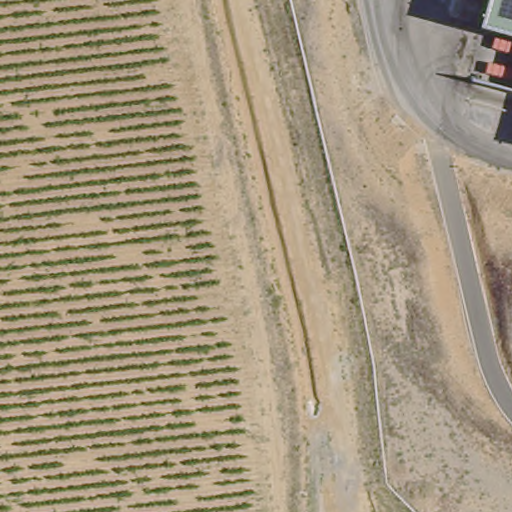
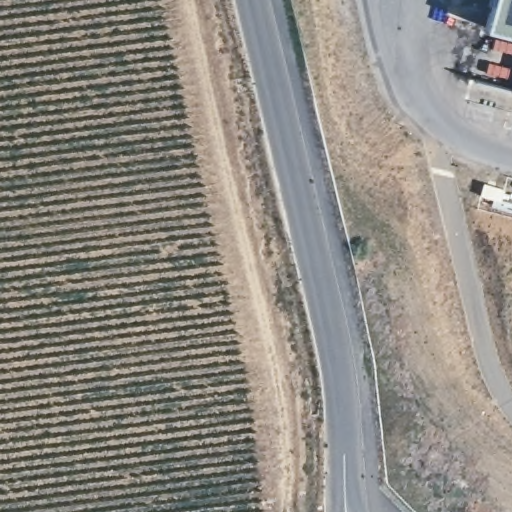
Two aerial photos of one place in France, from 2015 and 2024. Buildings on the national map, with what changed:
unchanged [(480,22),(486,0),(512,0),(512,31),(480,22)]

